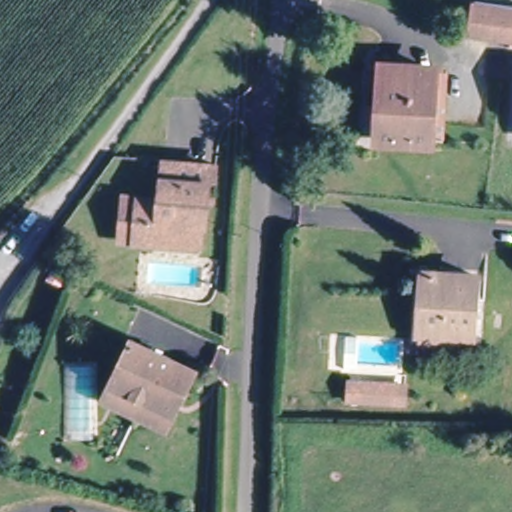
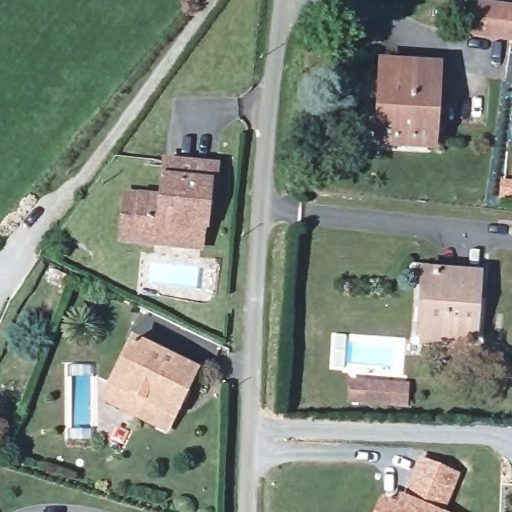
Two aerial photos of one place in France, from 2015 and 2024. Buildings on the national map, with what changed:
unchanged [(512,6),(512,39),(509,39),(471,34),(475,1),(512,6)]
unchanged [(439,142),(427,141),(372,139),(374,113),(377,68),(382,68),(432,71),(443,72),(439,142)]
unchanged [(183,247),(135,242),(120,239),(125,195),(140,197),(161,199),(163,178),(165,161),(208,165),(217,166),(215,196),(206,195),(205,205),(201,248),(183,247)]
unchanged [(421,344),(421,335),(419,335),(419,329),(422,329),(425,274),(478,277),(474,339),(451,337),(451,346),(421,344)]
unchanged [(166,430),(138,416),(104,400),(112,384),(133,342),(195,372),(184,394),(175,412),(166,430)]
unchanged [(407,388),(406,404),(350,400),(351,383),(407,388)]
new [(460,474),(444,512),(374,512),(381,496),(396,503),(416,458),(460,474)]

